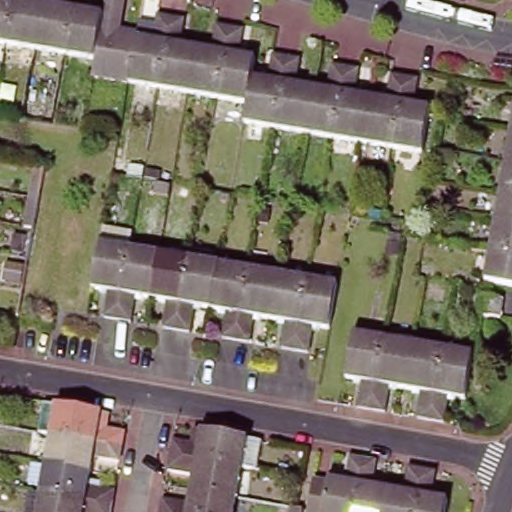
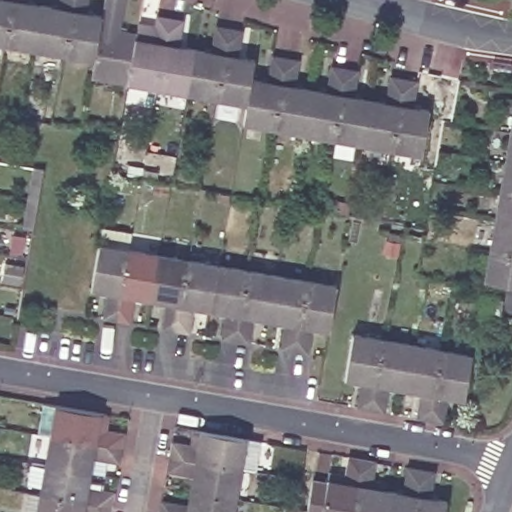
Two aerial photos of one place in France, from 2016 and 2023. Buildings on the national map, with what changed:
unchanged [(2,0),(16,0),(7,49),(0,48),(0,2),(2,3),(2,0)]
unchanged [(43,11),(36,54),(7,49),(16,0),(30,0),(29,8),(43,11)]
unchanged [(43,11),(61,14),(64,0),(76,0),(65,60),(36,54),(43,11)]
unchanged [(102,21),(95,65),(65,60),(76,0),(89,0),(85,18),(102,21)]
unchanged [(95,65),(102,21),(106,0),(123,0),(117,35),(138,39),(137,45),(129,88),(92,81),(95,65)]
unchanged [(137,45),(154,48),(158,22),(173,25),(160,94),(129,89),(129,88),(137,45)]
unchanged [(160,94),(173,25),(187,27),(182,53),(198,55),(190,99),(160,94)]
unchanged [(190,99),(198,55),(212,58),(217,32),(232,35),(220,104),(190,99)]
unchanged [(220,104),(232,35),(247,37),(241,63),(257,66),(254,85),(250,109),(220,104)]
unchanged [(247,128),(250,109),(254,85),(269,88),(274,64),(289,66),(277,134),(247,128)]
unchanged [(277,134),(289,66),(302,69),(297,93),(315,96),(307,139),(277,134)]
unchanged [(307,139),(315,96),(329,98),(333,74),(348,77),(336,145),(307,139)]
unchanged [(360,80),(356,104),(372,106),(365,150),(336,145),(348,77),(360,80)]
unchanged [(365,150),(372,106),(387,109),(392,85),(407,87),(395,155),(365,150)]
unchanged [(407,87),(420,89),(415,115),(430,116),(422,160),(395,155),(407,87)]
unchanged [(512,113),(512,133),(509,133),(512,113)]
unchanged [(509,133),(512,133),(512,163),(504,161),(509,133)]
unchanged [(512,163),(512,194),(498,192),(504,161),(512,163)]
unchanged [(18,259),(17,259),(22,229),(27,199),(33,168),(44,170),(39,201),(34,231),(28,261),(23,290),(13,288),(18,259)]
unchanged [(498,192),(512,194),(512,224),(493,221),(498,192)]
unchanged [(512,224),(512,255),(488,251),(493,221),(512,224)]
unchanged [(125,315),(109,312),(114,290),(98,287),(106,242),(109,226),(139,231),(135,247),(125,315)]
unchanged [(165,252),(157,297),(142,294),(139,318),(125,315),(135,247),(165,252)]
unchanged [(482,280),(488,251),(512,255),(512,285),(482,280)]
unchanged [(170,323),(174,300),(157,297),(165,252),(195,257),(182,325),(170,323)]
unchanged [(224,262),(217,307),(202,305),(197,328),(182,325),(195,257),(224,262)]
unchanged [(254,267),(242,336),(228,333),(232,310),(217,307),(224,262),(254,267)]
unchanged [(261,315),(257,338),(242,336),(254,267),(284,273),(276,318),(261,315)]
unchanged [(286,344),(290,320),(276,318),(284,273),(311,277),(300,346),(286,344)]
unchanged [(311,277),(342,282),(333,327),(317,325),(314,348),(300,346),(311,277)]
unchanged [(485,297),(505,300),(501,320),(481,316),(485,297)]
unchanged [(362,384),(346,382),(354,336),(383,341),(372,411),(357,408),(362,384)]
unchanged [(414,346),(405,392),(390,389),(387,413),(372,411),(383,341),(414,346)]
unchanged [(418,418),(422,395),(405,392),(414,346),(442,351),(431,421),(418,418)]
unchanged [(474,356),(465,402),(450,400),(447,424),(431,421),(442,351),(474,356)]
unchanged [(110,418),(107,434),(124,437),(122,452),(52,440),(40,438),(45,407),(110,418)]
unchanged [(250,441),(244,473),(171,460),(174,445),(196,449),(200,433),(250,441)]
unchanged [(52,440),(122,452),(119,465),(94,460),(91,478),(46,469),(52,440)]
unchanged [(315,485),(327,488),(330,473),(347,476),(350,459),(364,461),(355,512),(310,512),(315,485)]
unchanged [(239,503),(192,495),(195,478),(169,474),(171,460),(244,473),(239,503)]
unchanged [(364,461),(378,464),(375,482),(392,485),(390,494),(387,512),(355,512),(364,461)]
unchanged [(91,478),(88,491),(114,495),(111,509),(41,498),(46,469),(91,478)]
unchanged [(424,472),(416,512),(387,512),(390,494),(405,496),(410,469),(424,472)]
unchanged [(437,474),(432,501),(448,504),(447,512),(416,512),(424,472),(437,474)]
unchanged [(110,512),(23,512),(27,495),(41,498),(111,509),(110,512)]
unchanged [(163,503),(189,508),(192,495),(239,503),(237,512),(162,512),(163,503)]

